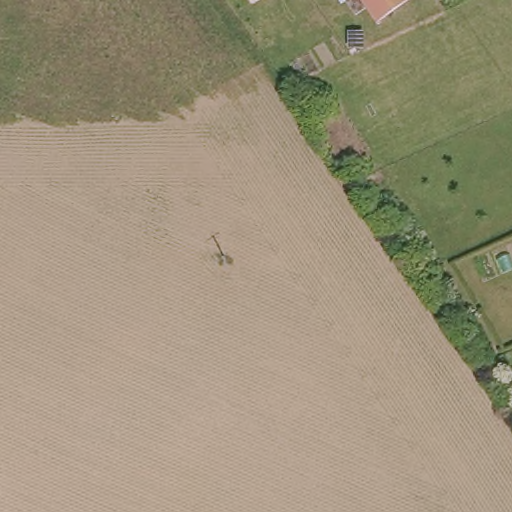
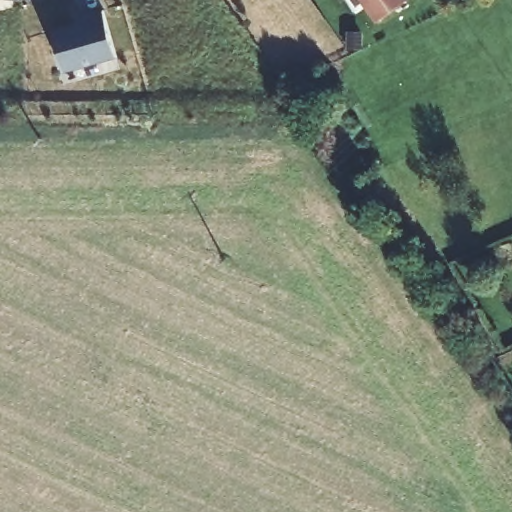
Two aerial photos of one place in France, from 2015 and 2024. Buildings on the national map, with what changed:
unchanged [(359,0),(405,0),(374,21),(359,0)]
new [(81,25),(80,19),(103,13),(116,58),(64,73),(53,33),(81,25)]

